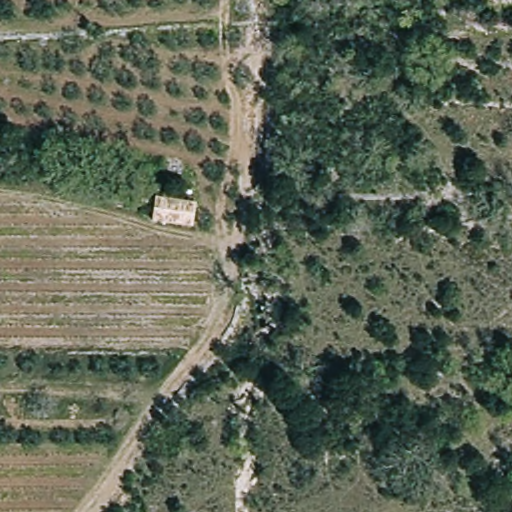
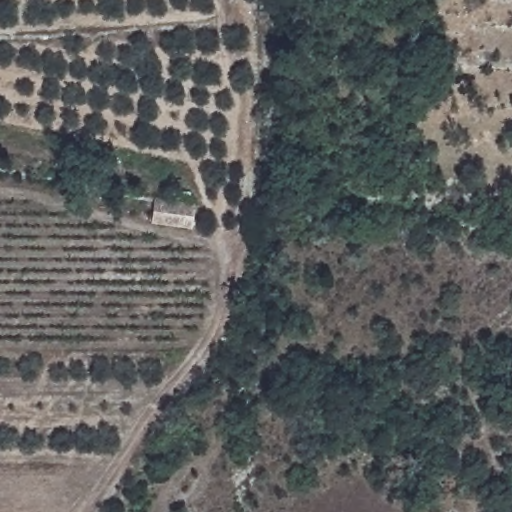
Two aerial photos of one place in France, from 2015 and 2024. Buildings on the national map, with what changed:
unchanged [(147,199),(184,205),(182,229),(144,224),(147,199)]

